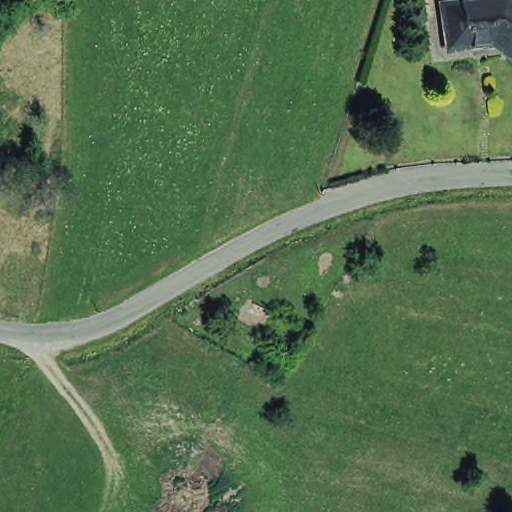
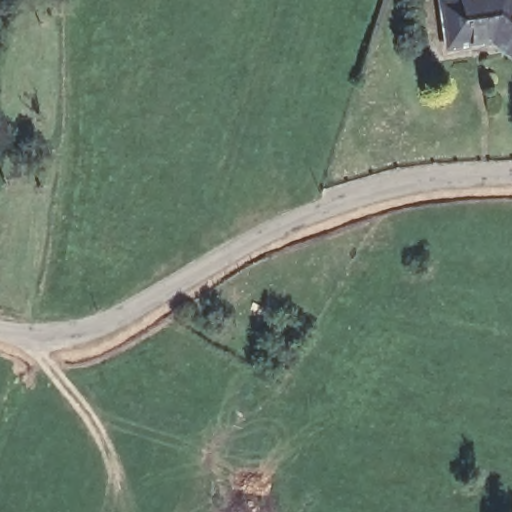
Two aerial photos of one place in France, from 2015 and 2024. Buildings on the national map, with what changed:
unchanged [(505,1),(512,7),(512,64),(496,52),(472,55),(471,51),(446,53),(442,26),(441,9),(448,7),(505,1)]

